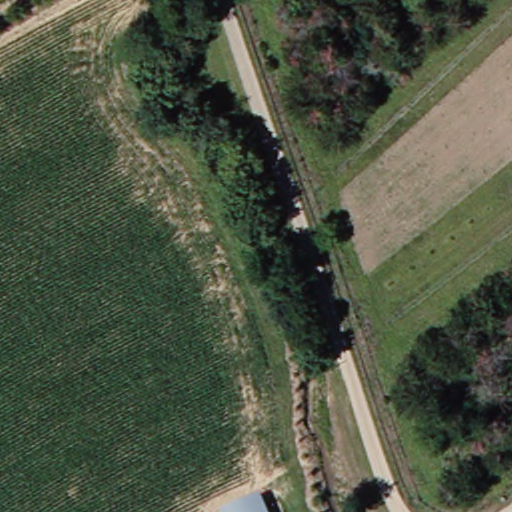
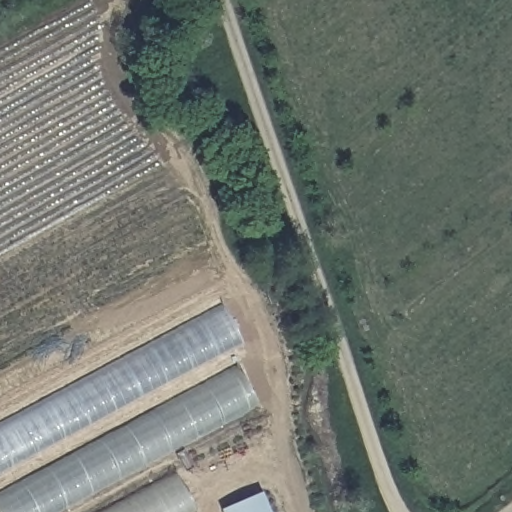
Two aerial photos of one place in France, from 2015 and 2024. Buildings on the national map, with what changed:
new [(220,304),(240,343),(0,472),(0,421),(220,304)]
new [(259,407),(61,512),(0,512),(0,491),(238,364),(259,407)]
new [(197,512),(106,512),(177,473),(197,512)]
unchanged [(266,492),(274,512),(229,512),(226,507),(266,492)]

